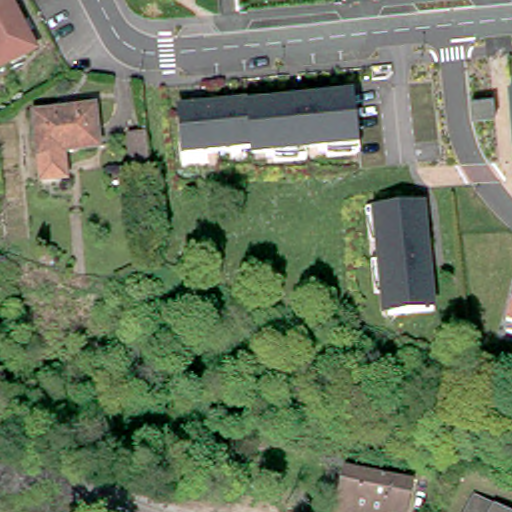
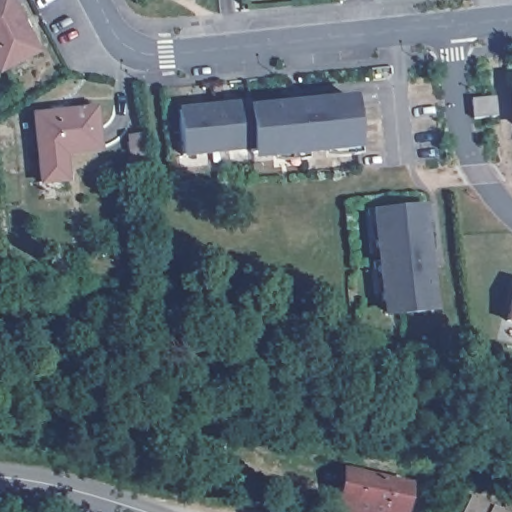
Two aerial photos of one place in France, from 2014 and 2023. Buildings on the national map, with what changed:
unchanged [(34,50),(0,68),(0,0),(7,0),(34,50)]
unchanged [(246,100),(247,107),(352,97),(359,152),(251,161),(250,146),(181,158),(176,108),(246,100)]
unchanged [(33,119),(92,114),(96,153),(60,156),(62,182),(40,185),(33,119)]
unchanged [(147,171),(132,173),(129,140),(145,137),(147,171)]
unchanged [(425,206),(436,312),(382,319),(373,210),(425,206)]
unchanged [(512,295),(512,324),(505,321),(512,295)]
unchanged [(339,504),(353,465),(416,487),(407,512),(338,512),(336,511),(339,504)]
unchanged [(471,512),(479,498),(503,512),(471,512)]

